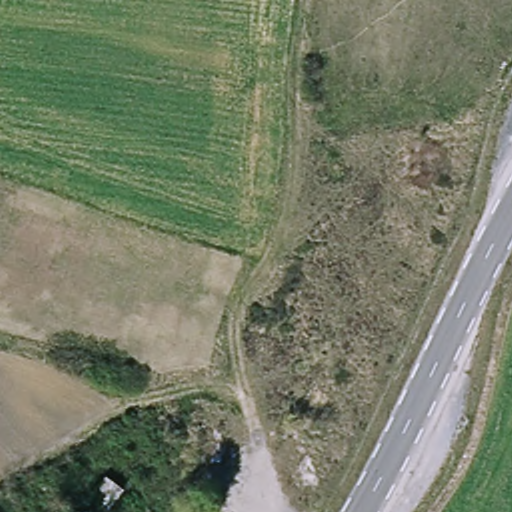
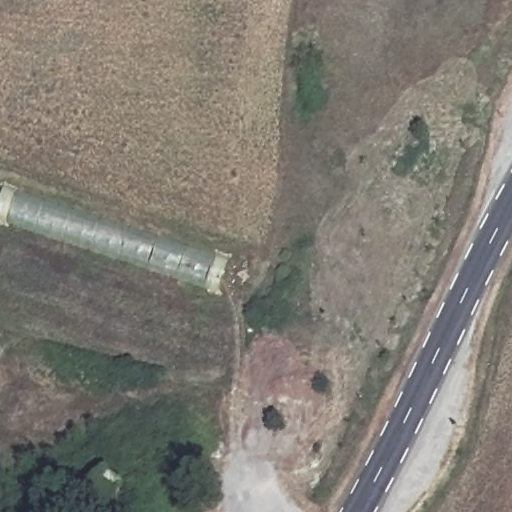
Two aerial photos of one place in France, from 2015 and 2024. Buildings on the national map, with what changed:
new [(230,261),(221,293),(0,220),(0,203),(6,185),(230,261)]
unchanged [(104,507),(87,496),(99,472),(121,486),(104,507)]

